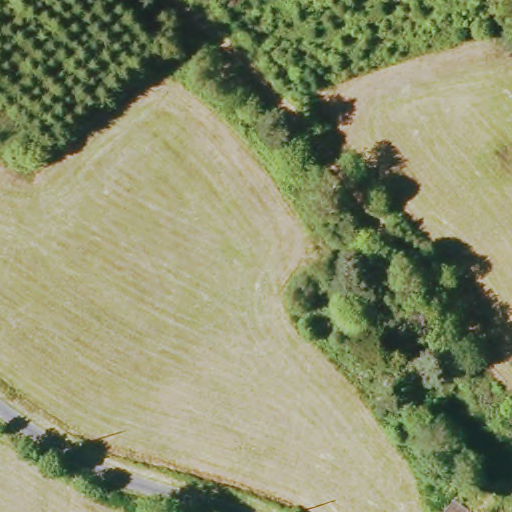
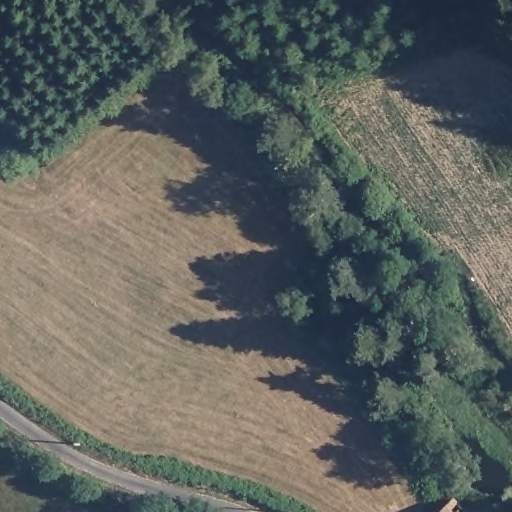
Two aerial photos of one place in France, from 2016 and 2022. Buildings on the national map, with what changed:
unchanged [(458,510),(462,507),(466,512),(456,512),(458,510)]

